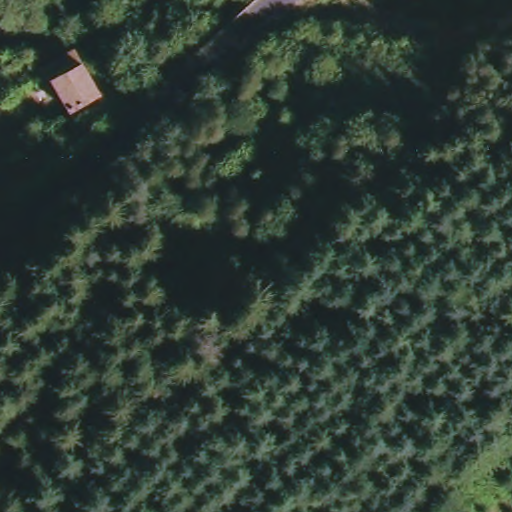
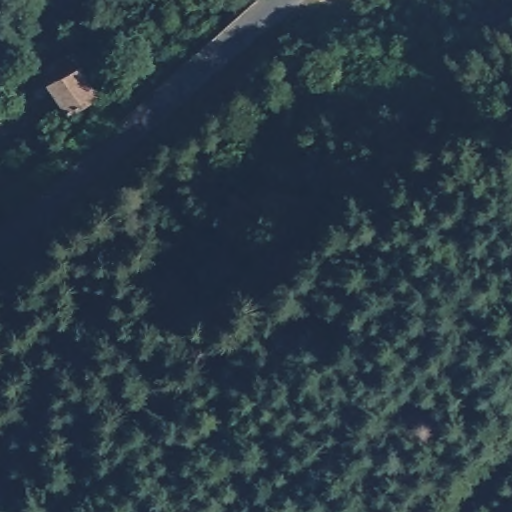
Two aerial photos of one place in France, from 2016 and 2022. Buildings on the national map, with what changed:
unchanged [(106,101),(77,120),(58,88),(90,71),(106,101)]

